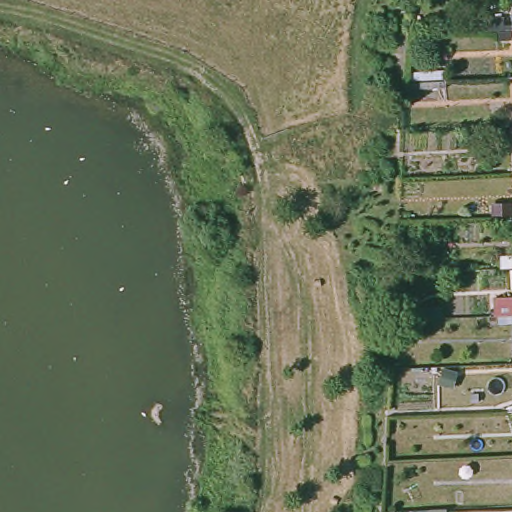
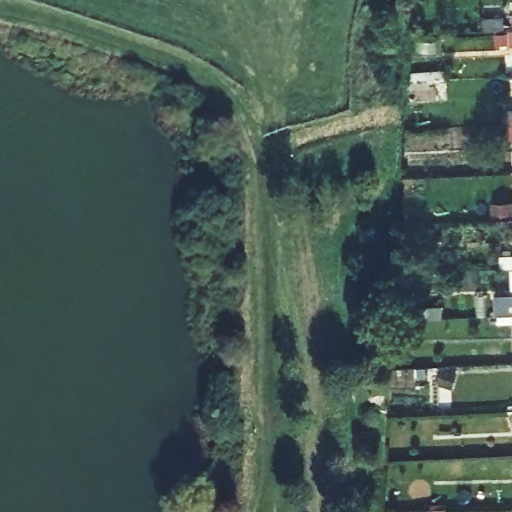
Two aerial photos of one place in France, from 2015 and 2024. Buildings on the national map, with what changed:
unchanged [(510,11),(512,11),(512,26),(510,26),(510,11)]
unchanged [(510,26),(512,26),(512,41),(511,41),(510,26)]
unchanged [(512,73),(512,123),(510,73),(512,73)]
unchanged [(512,266),(511,266),(510,256),(512,256),(512,266)]
unchanged [(494,314),(490,315),(490,296),(506,295),(507,300),(512,300),(512,322),(494,322),(494,314)]
unchanged [(434,512),(435,506),(450,505),(450,512),(434,512)]

